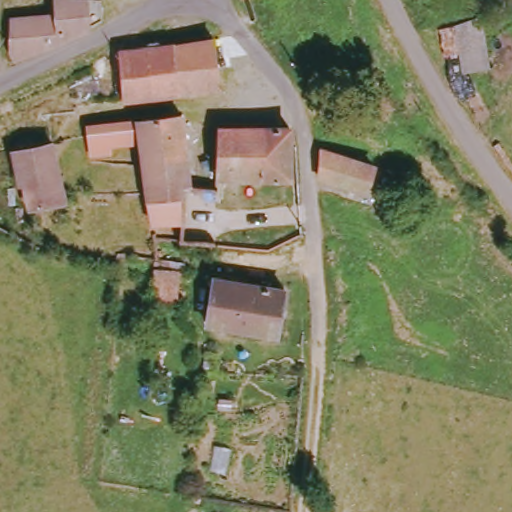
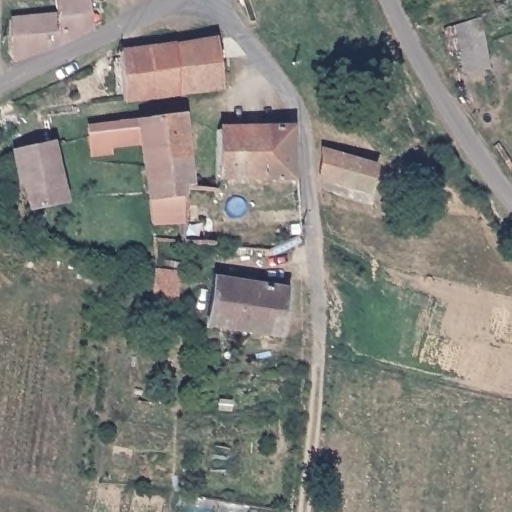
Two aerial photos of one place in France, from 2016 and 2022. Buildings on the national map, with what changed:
unchanged [(7,55),(7,21),(13,21),(57,19),(56,1),(86,3),(89,32),(41,55),(18,61),(10,62),(7,55)]
unchanged [(486,71),(457,75),(451,27),(477,19),(486,71)]
unchanged [(202,41),(209,88),(172,94),(167,45),(202,41)]
unchanged [(167,45),(172,94),(121,103),(114,52),(167,45)]
unchanged [(143,227),(137,197),(134,140),(101,146),(103,152),(85,156),(81,137),(80,132),(176,116),(184,189),(174,189),(173,222),(143,227)]
unchanged [(214,180),(216,128),(289,128),(290,180),(214,180)]
unchanged [(17,187),(12,187),(7,150),(46,141),(60,200),(23,207),(17,187)]
unchanged [(359,187),(309,174),(307,147),(364,167),(359,187)]
unchanged [(175,267),(175,300),(149,294),(149,266),(175,267)]
unchanged [(275,291),(268,336),(200,324),(207,281),(275,291)]

